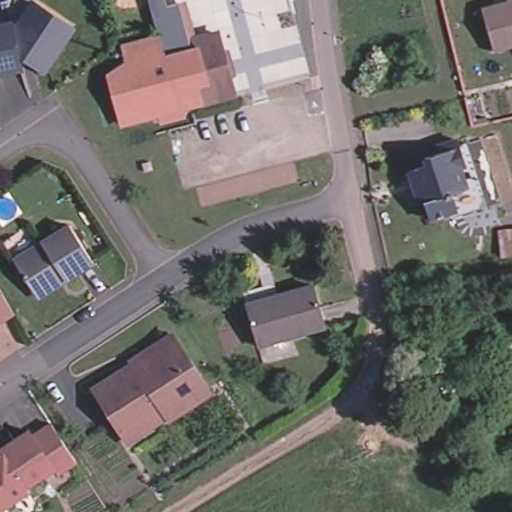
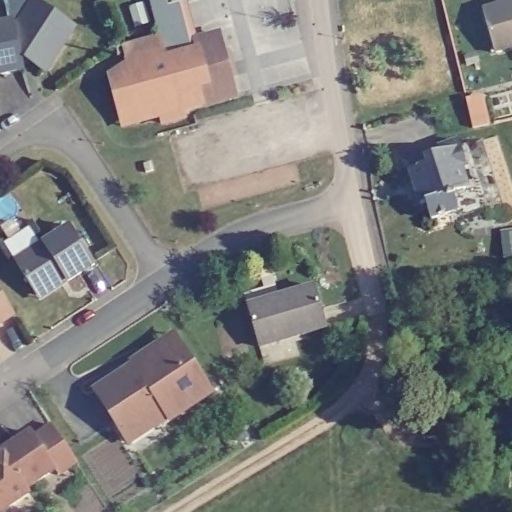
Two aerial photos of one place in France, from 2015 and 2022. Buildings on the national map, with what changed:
unchanged [(0,72),(0,23),(17,19),(17,23),(24,21),(38,0),(40,0),(78,25),(50,68),(42,63),(27,66),(0,72)]
unchanged [(127,63),(123,47),(160,37),(152,9),(150,0),(167,0),(168,5),(177,2),(186,0),(196,37),(218,31),(222,44),(226,59),(230,74),(236,93),(201,102),(182,107),(184,115),(163,120),(161,113),(141,118),(122,124),(117,105),(108,72),(127,63)]
unchanged [(481,8),(507,0),(512,0),(512,44),(495,49),(481,8)]
unchanged [(458,208),(436,215),(431,199),(426,200),(420,183),(415,167),(420,165),(434,161),(431,154),(446,149),(443,142),(463,136),(471,162),(465,164),(471,186),(459,190),(464,206),(458,208)]
unchanged [(150,164),(152,172),(145,174),(142,166),(150,164)]
unchanged [(76,223),(100,262),(72,279),(68,272),(62,276),(63,279),(42,292),(20,258),(76,223)]
unchanged [(512,234),(512,258),(504,259),(500,235),(512,234)]
unchanged [(326,325),(259,345),(247,303),(243,290),(275,281),(278,294),(315,283),(326,325)]
unchanged [(116,429),(90,387),(130,361),(128,358),(168,332),(173,341),(205,390),(165,417),(125,443),(116,429)]
unchanged [(38,434),(58,421),(83,460),(63,473),(60,467),(38,434)]
unchanged [(38,434),(60,467),(32,486),(35,490),(1,512),(0,510),(0,452),(6,448),(35,428),(38,434)]

